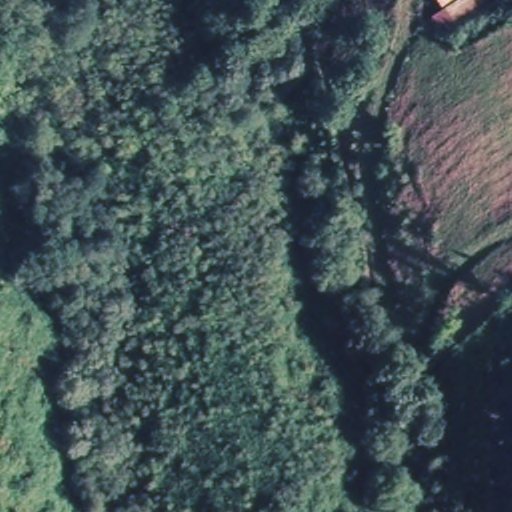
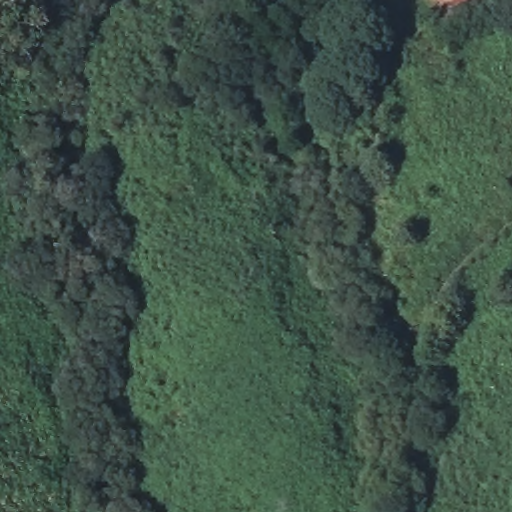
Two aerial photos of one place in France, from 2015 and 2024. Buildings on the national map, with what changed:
unchanged [(428,16),(441,6),(438,0),(507,0),(444,40),(428,16)]

